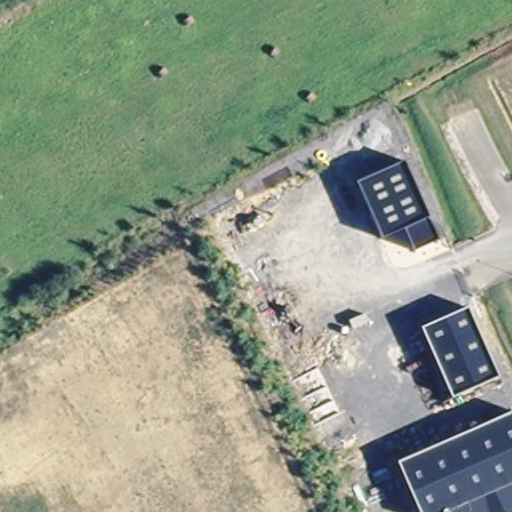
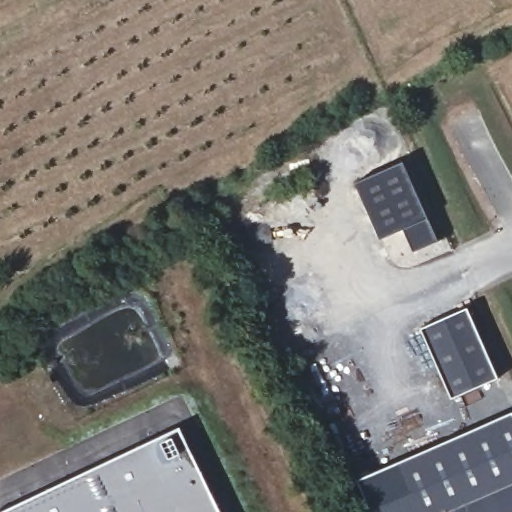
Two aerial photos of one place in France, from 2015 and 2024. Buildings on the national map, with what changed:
unchanged [(438,241),(415,252),(405,227),(380,238),(355,180),(402,159),(438,241)]
unchanged [(420,333),(467,313),(498,383),(451,403),(420,333)]
unchanged [(397,463),(512,412),(512,512),(418,512),(397,463)]
new [(218,512),(18,512),(181,434),(218,512)]
new [(358,481),(397,463),(418,512),(371,512),(358,481)]

